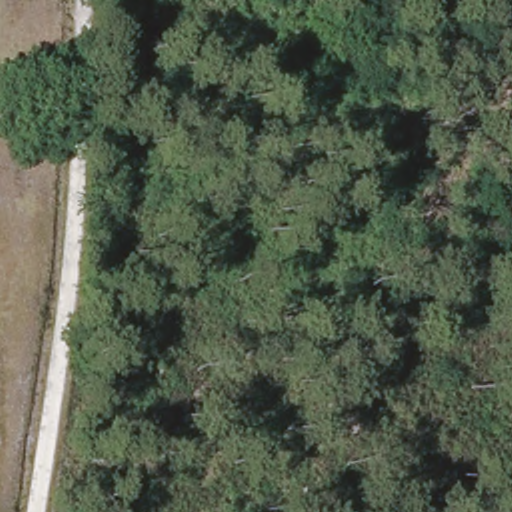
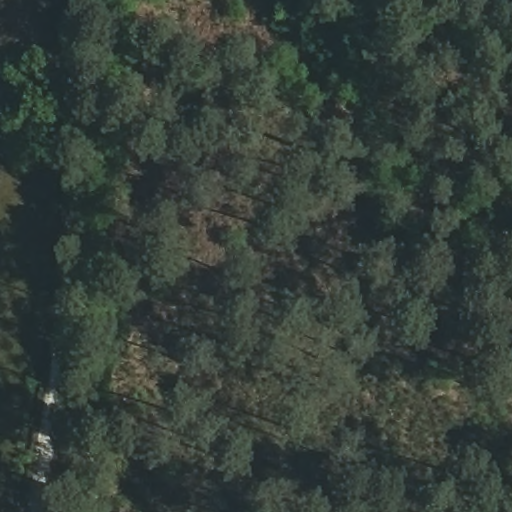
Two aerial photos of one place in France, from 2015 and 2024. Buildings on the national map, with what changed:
unchanged [(319,64),(318,32),(345,32),(348,63),(319,64)]
unchanged [(442,232),(442,195),(507,195),(506,231),(442,232)]

